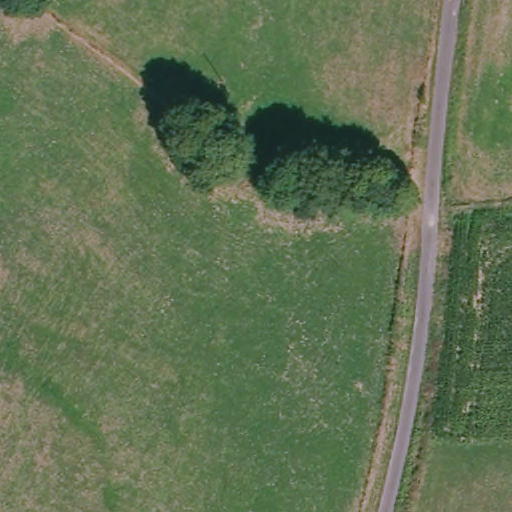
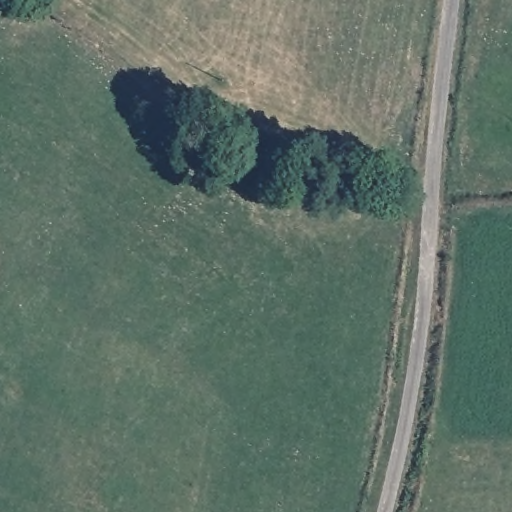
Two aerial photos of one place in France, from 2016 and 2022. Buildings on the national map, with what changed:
[]

